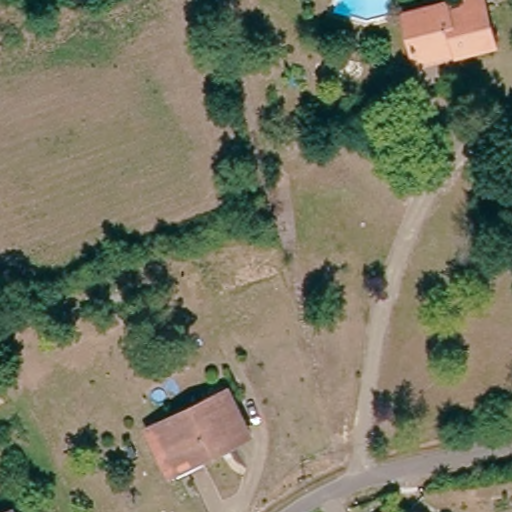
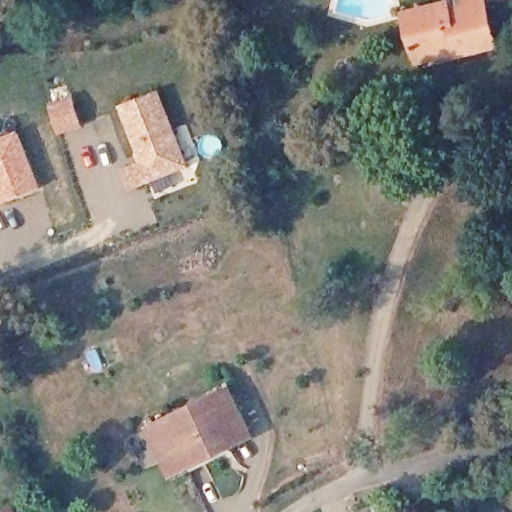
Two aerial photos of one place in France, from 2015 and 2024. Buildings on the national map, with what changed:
unchanged [(464,59),(463,51),(451,53),(452,58),(422,64),(411,19),(450,9),(448,0),(490,0),(491,7),(500,52),(464,59)]
new [(120,169),(138,162),(119,106),(159,90),(189,167),(130,191),(120,169)]
new [(72,94),(83,127),(55,136),(45,102),(72,94)]
new [(18,128),(41,187),(0,203),(0,136),(18,128)]
unchanged [(164,455),(151,432),(232,390),(253,431),(224,447),(226,452),(190,471),(176,478),(164,455)]
unchanged [(385,504),(392,512),(377,512),(383,506),(385,504)]
unchanged [(13,512),(2,512),(10,507),(13,512)]

